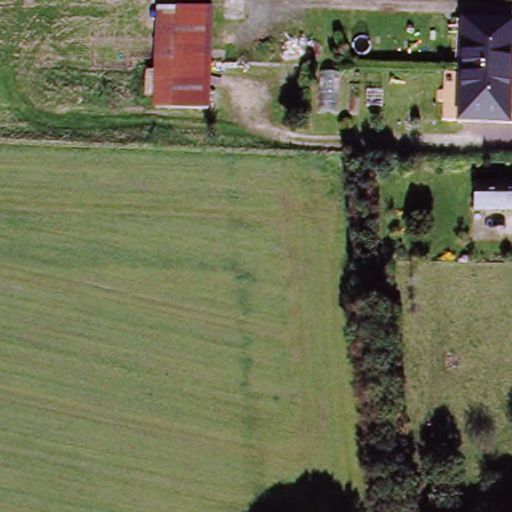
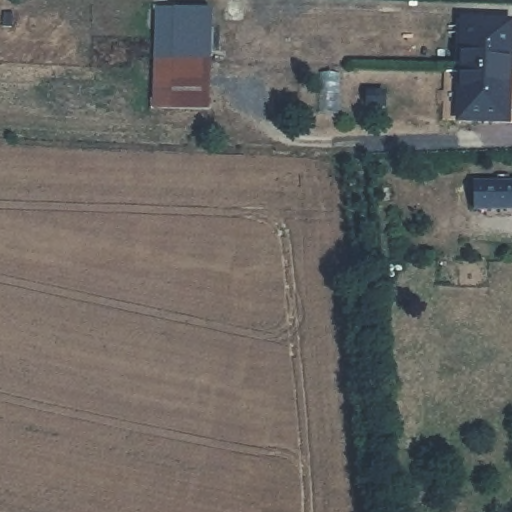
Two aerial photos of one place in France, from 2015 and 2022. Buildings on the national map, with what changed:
unchanged [(153,55),(152,4),(173,5),(172,55),(153,55)]
unchanged [(172,55),(173,5),(209,7),(210,55),(172,55)]
unchanged [(461,70),(462,17),(505,19),(505,36),(511,37),(511,70),(461,70)]
unchanged [(210,109),(154,110),(153,99),(144,99),(144,72),(153,72),(153,55),(172,55),(210,55),(210,109)]
unchanged [(503,99),(502,121),(461,121),(461,70),(511,70),(510,99),(503,99)]
unchanged [(472,211),(472,199),(473,186),(512,186),(512,211),(472,211)]

